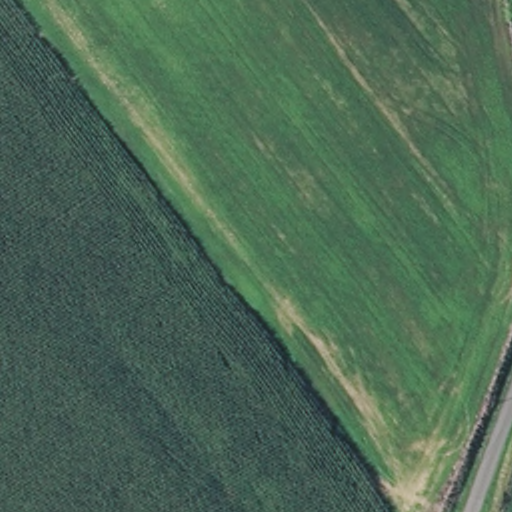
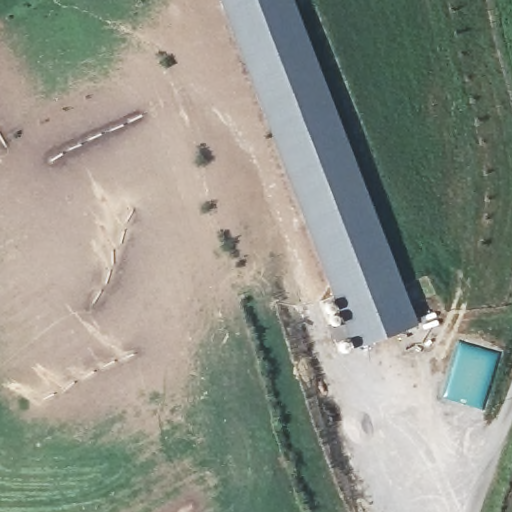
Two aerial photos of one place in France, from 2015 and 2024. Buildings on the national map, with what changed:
new [(224,0),(289,0),(414,326),(395,333),(375,340),(356,347),(224,0)]

